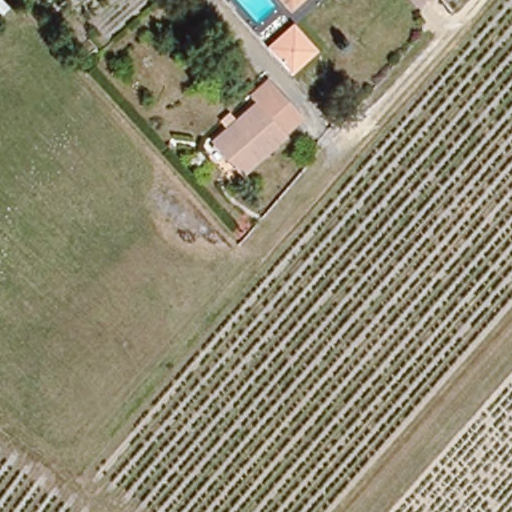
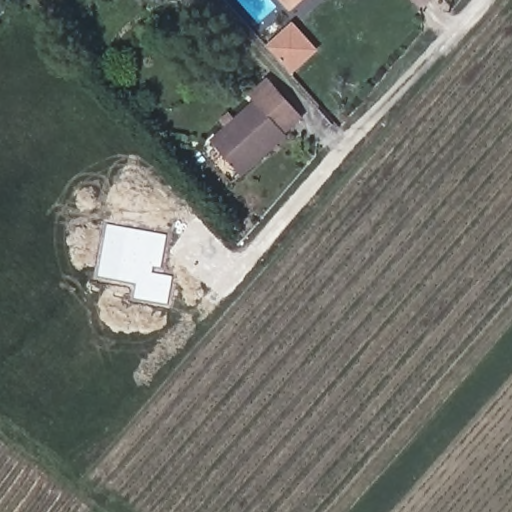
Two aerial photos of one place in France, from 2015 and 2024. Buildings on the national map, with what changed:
unchanged [(280,0),(300,0),(295,5),(289,10),(280,0)]
new [(291,74),(266,48),(295,22),(320,52),(291,74)]
unchanged [(250,95),(265,81),(300,120),(282,136),(283,138),(242,176),(211,141),(225,128),(219,122),(229,112),(235,120),(255,101),(250,95)]
new [(135,298),(138,282),(99,275),(108,225),(167,236),(162,268),(154,267),(152,272),(173,277),(168,305),(135,298)]

